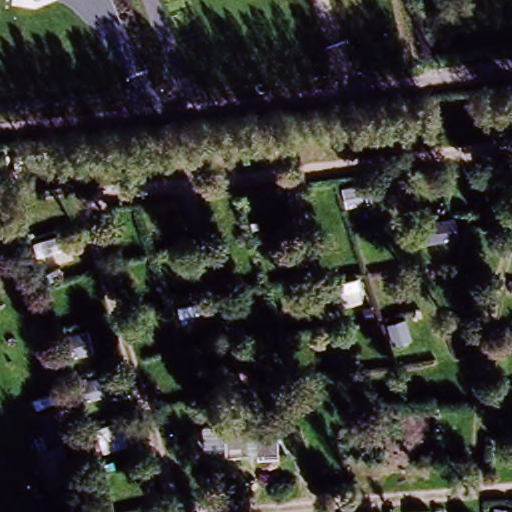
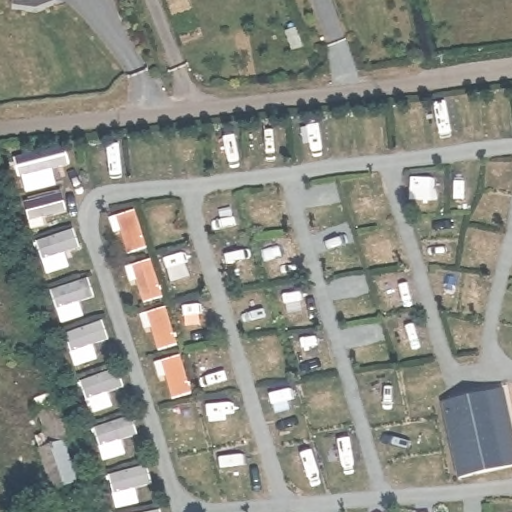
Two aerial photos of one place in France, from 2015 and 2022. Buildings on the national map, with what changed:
unchanged [(44,411),(38,389),(59,383),(69,413),(58,418),(70,458),(52,464),(36,413),(44,411)]
new [(458,476),(442,403),(502,389),(512,431),(512,466),(458,476)]

